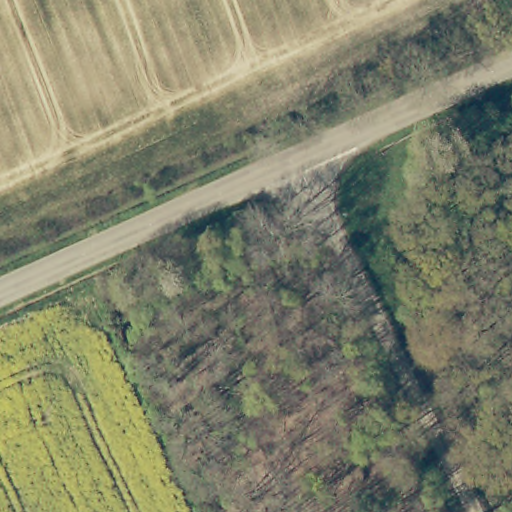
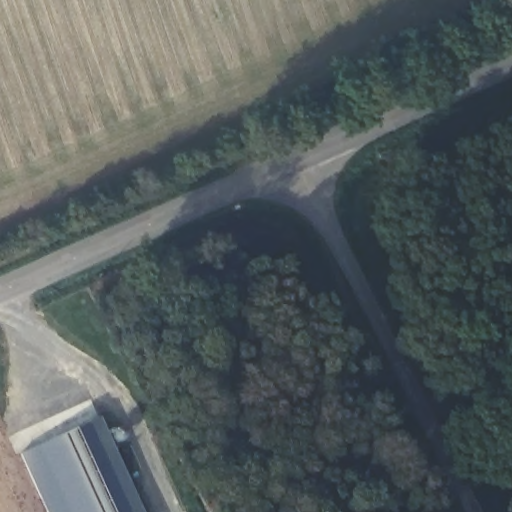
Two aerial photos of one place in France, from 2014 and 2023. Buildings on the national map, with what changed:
new [(100,417),(143,512),(47,512),(21,454),(100,417)]

